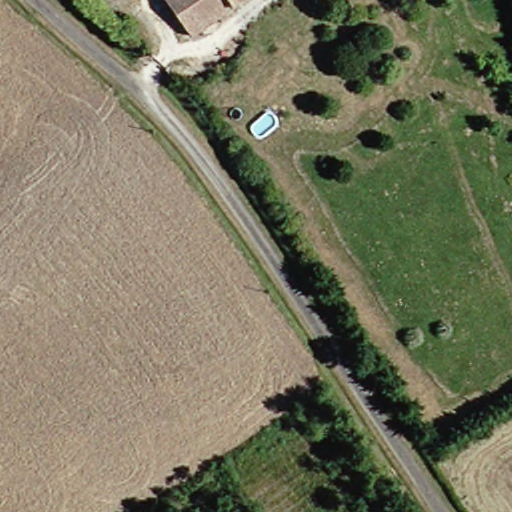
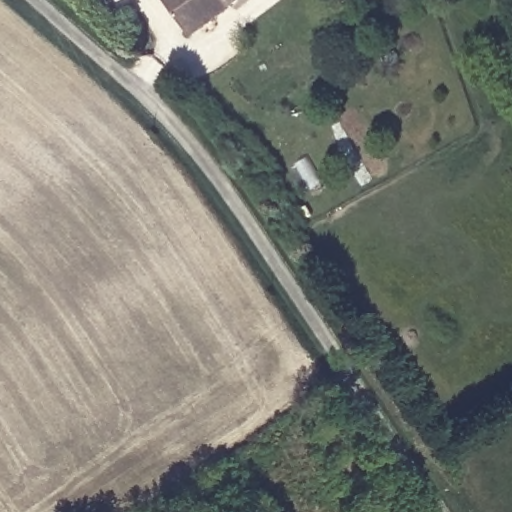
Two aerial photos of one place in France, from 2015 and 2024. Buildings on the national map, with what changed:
unchanged [(152,0),(236,0),(177,37),(152,0)]

